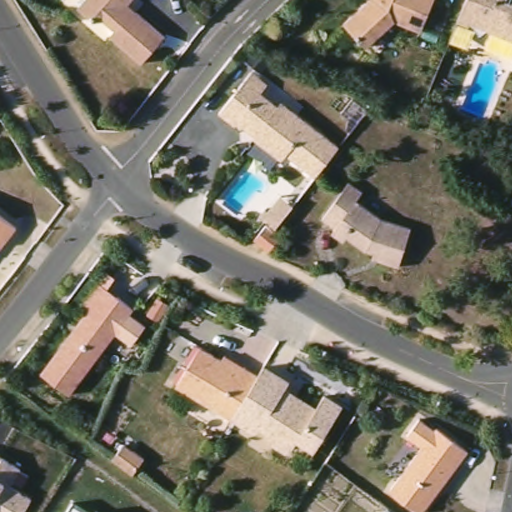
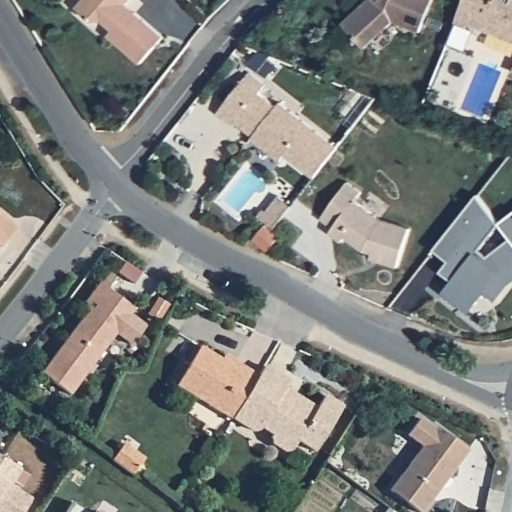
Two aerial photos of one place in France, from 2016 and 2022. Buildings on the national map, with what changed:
unchanged [(128,5),(137,14),(165,37),(142,65),(109,35),(114,30),(104,21),(94,22),(78,9),(85,0),(132,0),(128,5)]
unchanged [(421,30),(395,20),(366,47),(344,23),(368,0),(434,0),(421,30)]
unchanged [(512,41),(480,28),(473,36),(466,26),(454,20),(455,17),(462,0),(512,0),(512,41)]
unchanged [(238,128),(220,115),(251,74),(268,87),(263,94),(280,107),(283,103),(341,147),(317,177),(289,156),(284,162),(256,139),(256,137),(240,125),(238,128)]
unchanged [(376,254),(367,250),(348,236),(345,240),(334,232),(337,229),(325,220),(350,184),(364,193),(358,201),(385,220),(412,228),(401,265),(380,260),(375,258),(376,254)]
new [(464,304),(449,291),(457,281),(456,271),(449,265),(453,260),(439,248),(457,226),(481,195),(503,224),(503,225),(504,225),(483,250),(491,256),(512,241),(512,283),(510,284),(498,300),(488,291),(483,297),(473,310),(465,303),(464,304)]
unchanged [(293,207),(276,229),(266,221),(265,220),(281,198),(293,207)]
unchanged [(16,221),(4,237),(0,235),(0,209),(16,221)]
new [(512,236),(504,225),(503,225),(503,224),(512,217),(512,236)]
unchanged [(280,236),(270,249),(256,238),(266,225),(280,236)]
unchanged [(139,303),(75,389),(46,368),(94,305),(87,300),(105,278),(139,303)]
unchanged [(232,418),(176,385),(200,345),(222,359),(225,355),(244,366),(258,375),(246,395),(232,417),(232,418)]
unchanged [(288,380),(284,387),(316,407),(325,394),(343,405),(316,450),(298,439),(293,448),(286,450),(273,442),(272,435),(273,433),(262,426),(260,428),(254,430),(232,417),(246,395),(258,375),(264,366),(288,380)]
unchanged [(427,441),(411,430),(424,413),(439,425),(441,422),(472,445),(426,508),(395,485),(427,441)]
unchanged [(124,438),(144,453),(132,469),(112,454),(124,438)]
unchanged [(25,467),(15,485),(36,497),(28,512),(0,512),(0,452),(25,467)]
unchanged [(83,512),(69,512),(73,506),(83,512)]
unchanged [(98,512),(93,512),(95,510),(98,512)]

